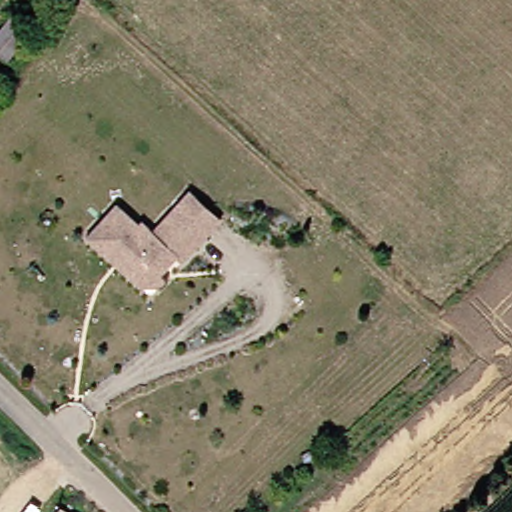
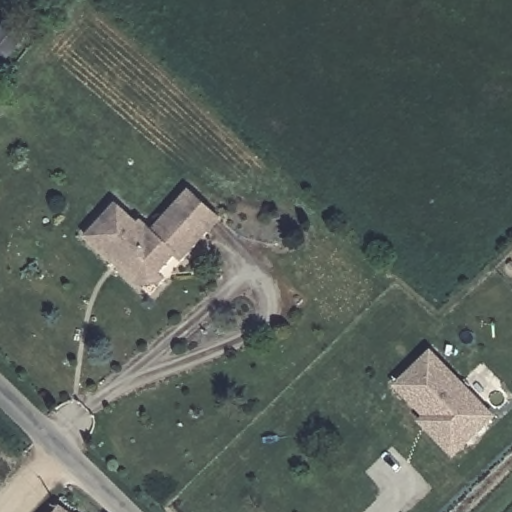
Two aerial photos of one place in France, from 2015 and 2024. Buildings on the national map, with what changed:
new [(11,17),(28,30),(5,59),(0,55),(0,31),(11,17)]
unchanged [(73,229),(105,194),(128,214),(135,207),(149,220),(183,183),(215,212),(143,292),(73,229)]
new [(393,386),(433,348),(491,410),(459,442),(446,453),(418,423),(423,417),(393,386)]
unchanged [(58,512),(53,512),(55,509),(58,512)]

